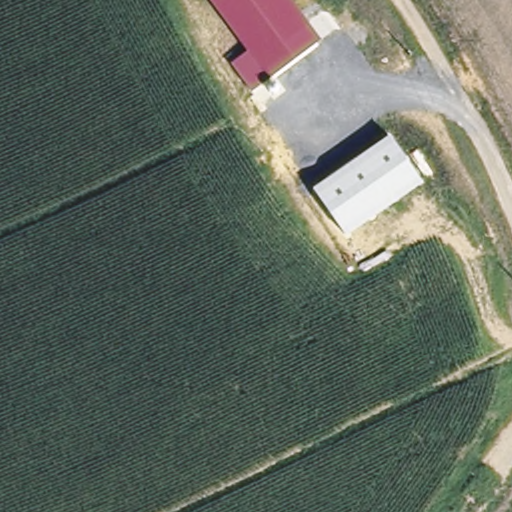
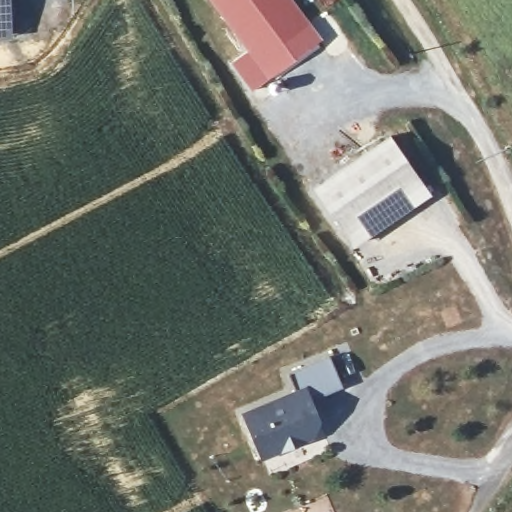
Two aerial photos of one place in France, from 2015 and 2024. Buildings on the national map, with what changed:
new [(0,40),(0,0),(11,0),(12,40),(0,40)]
unchanged [(323,37),(252,90),(231,62),(246,50),(210,0),(295,0),(323,37)]
unchanged [(390,135),(424,184),(347,236),(312,187),(390,135)]
new [(340,386),(311,400),(314,410),(319,421),(313,440),(262,460),(244,413),(297,392),(290,375),(329,358),(340,386)]

